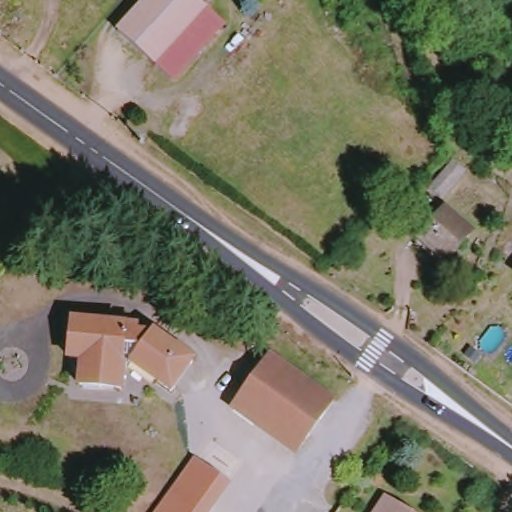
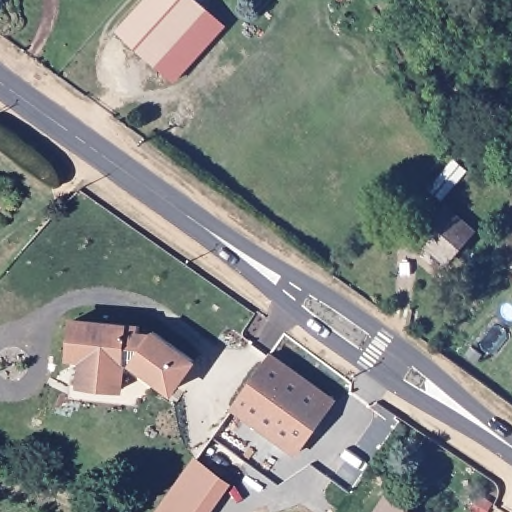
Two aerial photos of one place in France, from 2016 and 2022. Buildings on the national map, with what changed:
unchanged [(124,24),(147,0),(212,0),(214,1),(162,58),(124,24)]
unchanged [(232,18),(181,76),(162,58),(214,1),(232,18)]
unchanged [(432,189),(457,160),(469,169),(445,199),(432,189)]
unchanged [(426,239),(449,209),(478,232),(453,261),(426,239)]
unchanged [(146,328),(159,329),(159,325),(200,355),(178,387),(164,377),(167,373),(141,355),(140,352),(131,352),(127,385),(87,380),(89,354),(77,353),(80,315),(146,322),(146,328)]
unchanged [(240,408),(277,355),(340,401),(302,453),(240,408)]
unchanged [(229,484),(209,512),(154,512),(194,458),(229,484)]
unchanged [(393,501),(411,512),(386,512),(393,501)]

